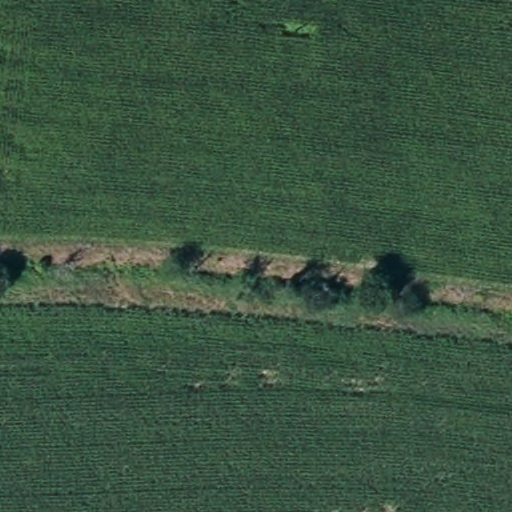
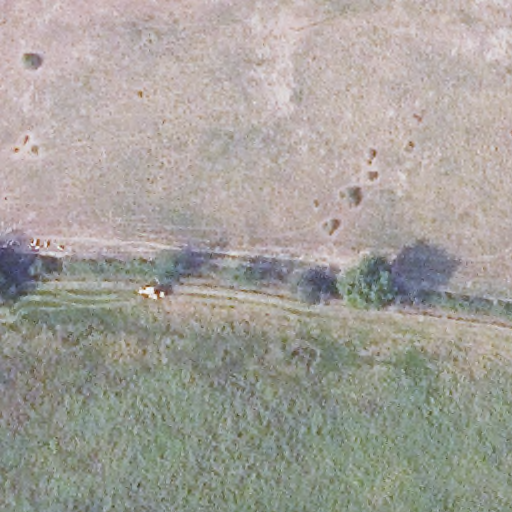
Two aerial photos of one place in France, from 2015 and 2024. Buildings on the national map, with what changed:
[]

